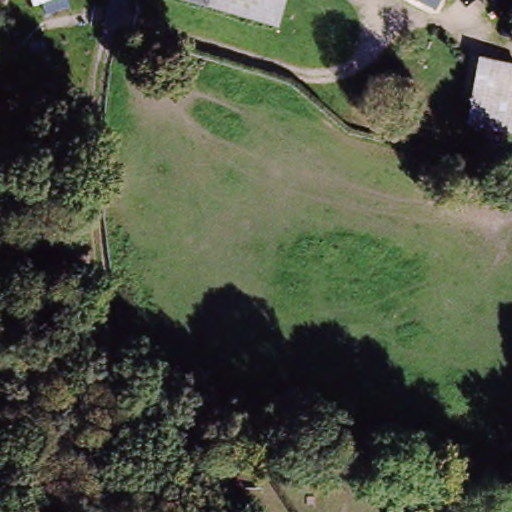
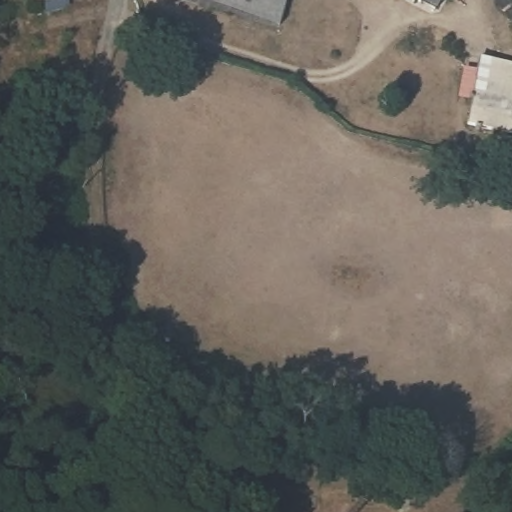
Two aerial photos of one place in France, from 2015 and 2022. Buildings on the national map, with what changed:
unchanged [(282,30),(168,0),(291,0),(282,30)]
unchanged [(428,16),(401,0),(439,0),(428,16)]
unchanged [(462,122),(481,50),(512,59),(512,88),(510,94),(512,94),(512,136),(462,122)]

